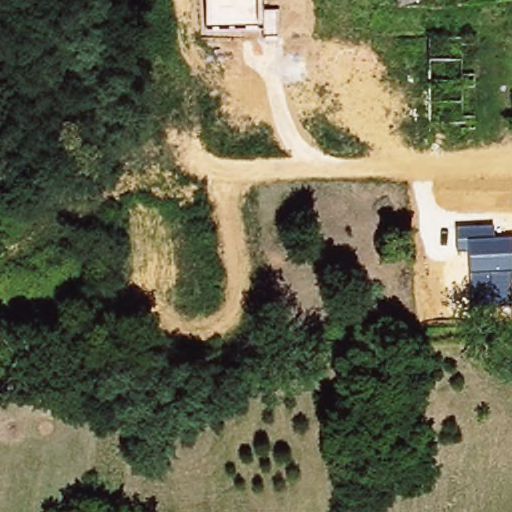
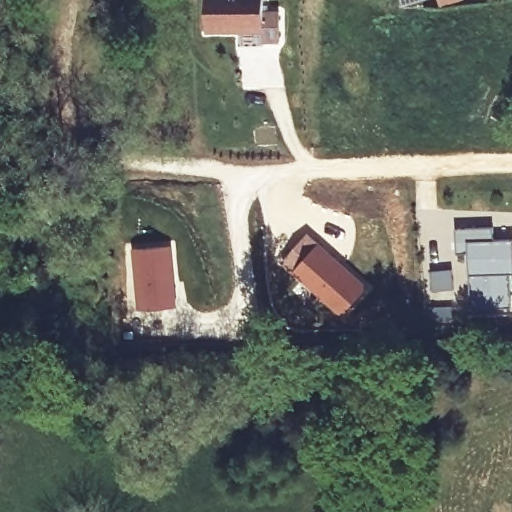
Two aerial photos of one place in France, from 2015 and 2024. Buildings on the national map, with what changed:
unchanged [(264,40),(263,29),(206,29),(206,0),(264,0),(264,13),(280,13),(280,39),(264,40)]
unchanged [(401,3),(401,0),(436,0),(436,4),(401,3)]
unchanged [(493,240),(512,240),(512,273),(509,273),(510,307),(470,309),(467,253),(456,253),(455,229),(494,227),(493,240)]
new [(306,230),(368,285),(340,318),(280,262),(306,230)]
new [(175,244),(180,305),(142,308),(138,247),(175,244)]
new [(451,269),(453,291),(430,293),(428,270),(451,269)]

